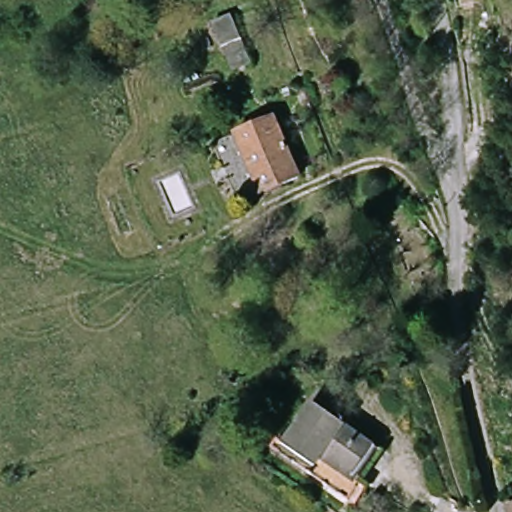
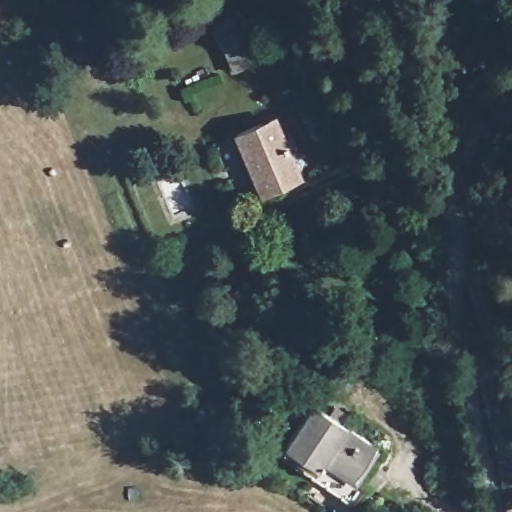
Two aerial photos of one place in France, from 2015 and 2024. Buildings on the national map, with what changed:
unchanged [(473,2),(472,0),(483,0),(473,2)]
unchanged [(233,76),(213,26),(232,17),(255,67),(233,76)]
unchanged [(302,183),(260,199),(233,135),(276,117),(302,183)]
unchanged [(336,402),(345,390),(363,402),(355,414),(392,439),(367,471),(338,449),(326,465),(288,438),(293,429),(320,391),(336,402)]
unchanged [(338,449),(367,471),(392,439),(403,445),(361,505),(273,445),(287,425),(293,429),(288,438),(326,465),(338,449)]
unchanged [(512,501),(512,512),(509,512),(507,503),(512,501)]

